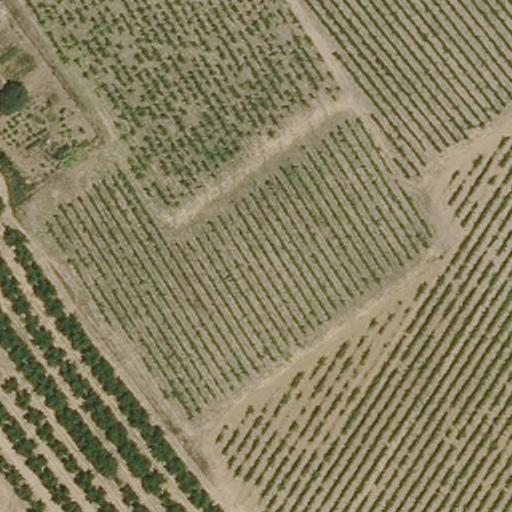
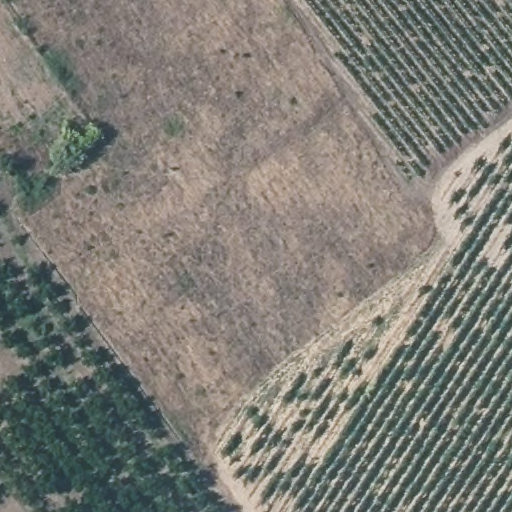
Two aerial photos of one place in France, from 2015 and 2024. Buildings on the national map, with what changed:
[]

